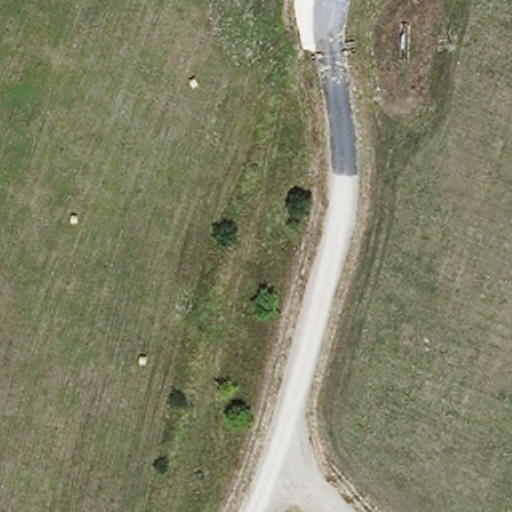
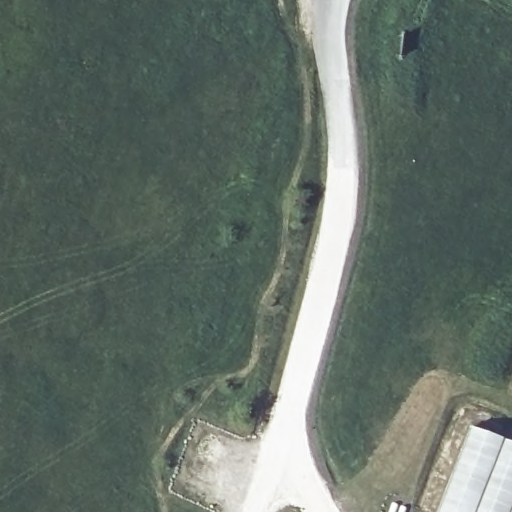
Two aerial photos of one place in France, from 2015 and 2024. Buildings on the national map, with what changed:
new [(512,512),(435,512),(469,426),(512,443),(512,512)]

